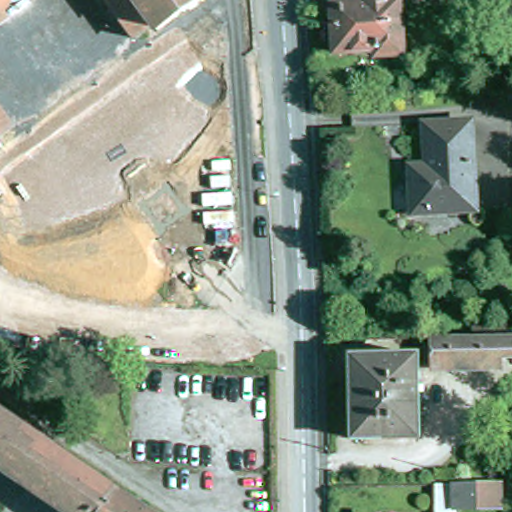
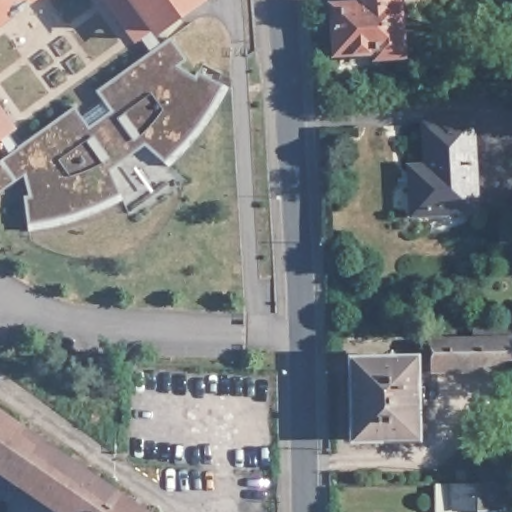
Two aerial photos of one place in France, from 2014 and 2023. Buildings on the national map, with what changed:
unchanged [(0,0),(31,0),(0,23),(0,0)]
unchanged [(137,36),(110,0),(137,0),(154,23),(137,36)]
unchanged [(154,23),(137,0),(197,0),(159,29),(154,23)]
unchanged [(407,6),(410,62),(383,64),(383,58),(342,61),(339,11),(369,9),(369,0),(396,0),(397,7),(407,6)]
new [(75,106),(82,115),(105,98),(97,89),(151,50),(139,35),(149,26),(162,44),(171,37),(187,60),(181,65),(196,74),(198,70),(230,86),(214,116),(193,143),(169,166),(146,144),(111,170),(124,200),(92,215),(62,224),(29,230),(24,197),(32,197),(26,173),(0,191),(0,161),(12,153),(2,138),(9,132),(19,146),(75,106)]
demolished [(192,88),(199,98),(224,133),(175,169),(143,125),(192,88)]
unchanged [(0,139),(0,107),(15,128),(0,139)]
unchanged [(481,204),(481,209),(420,212),(420,208),(418,168),(433,166),(432,125),(476,123),(481,204)]
unchanged [(0,149),(0,144),(5,145),(5,149),(0,149)]
demolished [(115,190),(122,200),(32,268),(67,313),(42,331),(0,274),(0,223),(90,155),(115,190)]
unchanged [(438,361),(437,342),(472,340),(472,327),(482,327),(482,340),(512,338),(512,358),(438,361)]
unchanged [(422,446),(356,448),(354,365),(421,362),(422,446)]
unchanged [(157,512),(71,512),(0,464),(0,406),(64,449),(157,512)]
unchanged [(508,509),(468,510),(468,512),(442,512),(442,488),(507,486),(508,509)]

